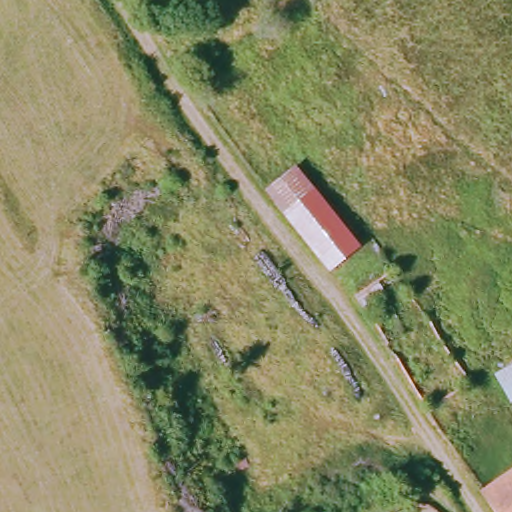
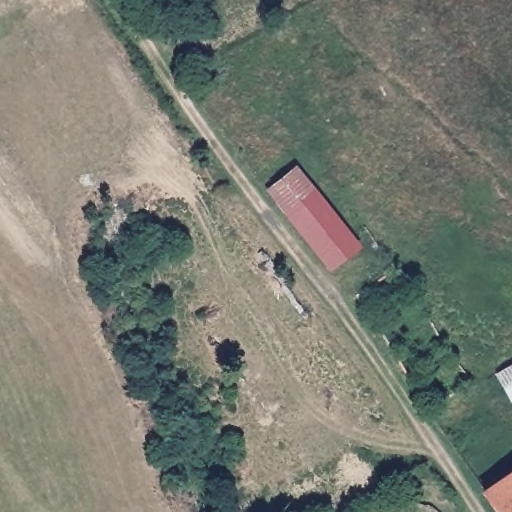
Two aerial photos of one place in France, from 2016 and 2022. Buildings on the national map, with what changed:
unchanged [(354,248),(327,271),(264,193),(265,192),(293,170),(354,248)]
unchanged [(394,285),(374,300),(366,288),(386,273),(394,285)]
unchanged [(510,402),(499,379),(498,377),(497,375),(512,368),(512,401),(510,402)]
unchanged [(512,473),(512,512),(491,512),(479,495),(512,473)]

